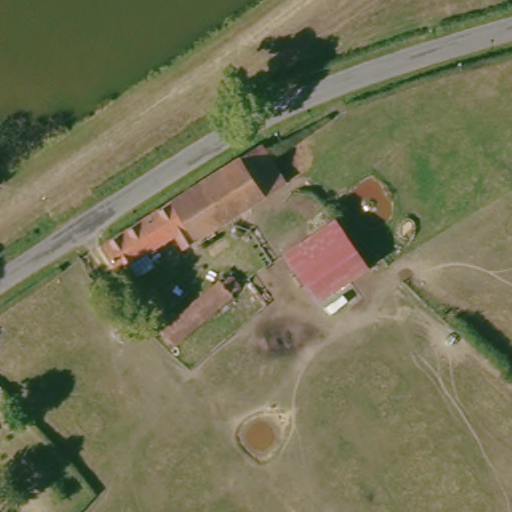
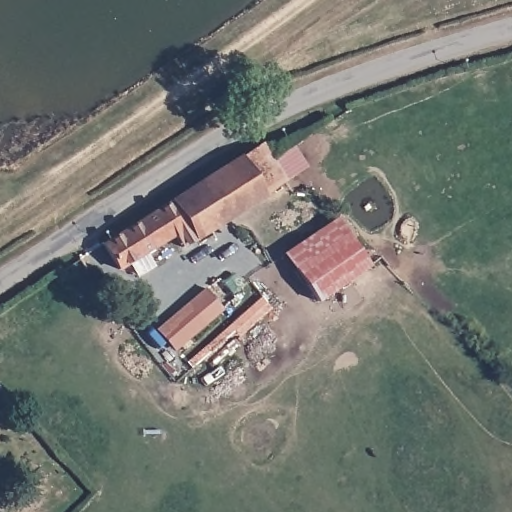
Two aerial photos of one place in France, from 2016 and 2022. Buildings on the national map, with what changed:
unchanged [(288,189),(195,245),(189,236),(121,276),(103,249),(265,149),(288,189)]
unchanged [(361,267),(311,300),(310,301),(278,255),(330,220),(361,267)]
unchanged [(155,330),(215,281),(218,286),(232,275),(240,285),(227,296),(230,300),(170,346),(155,330)]

